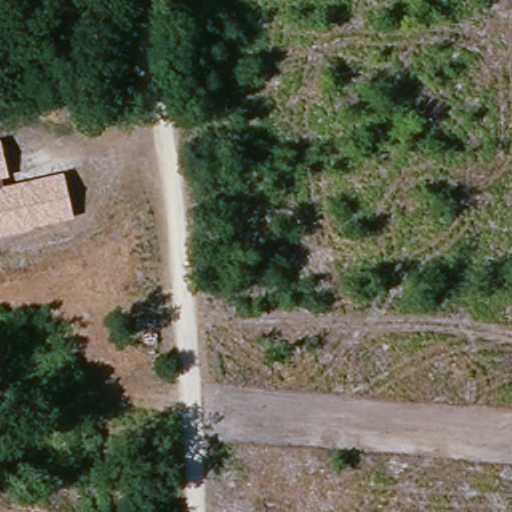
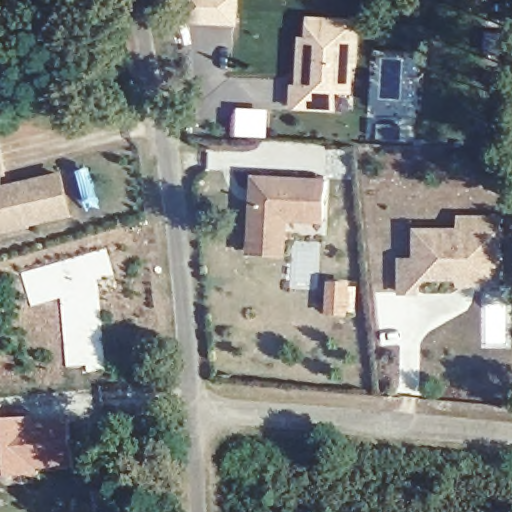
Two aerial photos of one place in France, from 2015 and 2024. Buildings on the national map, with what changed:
new [(240,0),(237,27),(184,22),(188,0),(240,0)]
new [(324,88),(323,107),(285,105),(286,85),(291,85),(294,37),(300,38),(301,17),(350,20),(347,61),(345,61),(343,89),(324,88)]
new [(236,105),(269,109),(267,138),(233,136),(236,105)]
unchanged [(62,172),(73,216),(28,226),(29,231),(0,237),(0,140),(9,175),(3,177),(4,186),(62,172)]
new [(246,176),(316,180),(314,219),(277,217),(276,235),(275,252),(242,251),(243,234),(246,176)]
new [(409,276),(409,291),(392,291),(392,259),(408,259),(408,230),(453,229),(453,216),(470,216),(491,216),(491,268),(491,283),(452,283),(452,276),(409,276)]
new [(34,418),(34,425),(66,421),(71,467),(38,471),(39,477),(0,481),(0,422),(34,418)]

